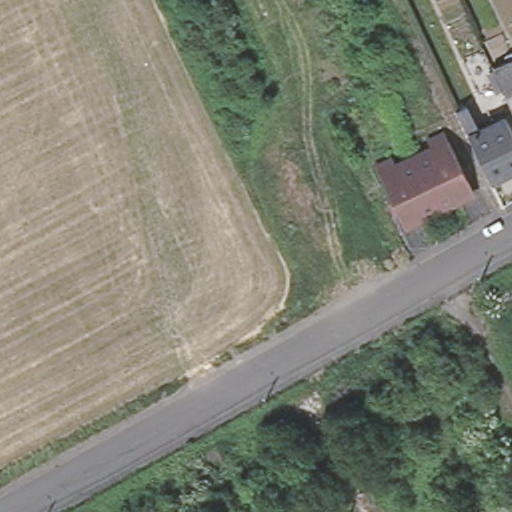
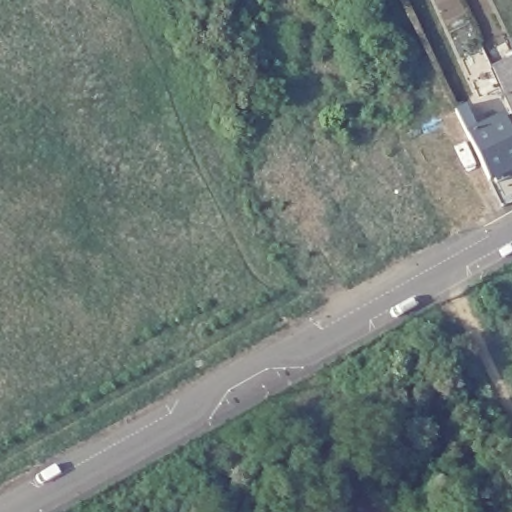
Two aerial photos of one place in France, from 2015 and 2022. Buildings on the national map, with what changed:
unchanged [(512,136),(512,159),(485,172),(463,126),(500,110),(512,136)]
demolished [(376,173),(410,156),(419,151),(443,140),(467,190),(442,202),(434,206),(401,222),(376,173)]

